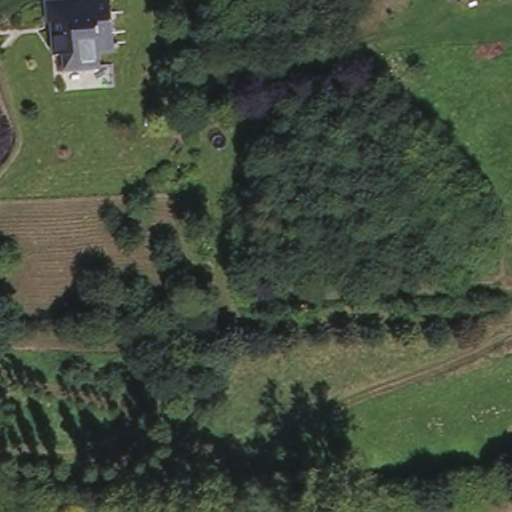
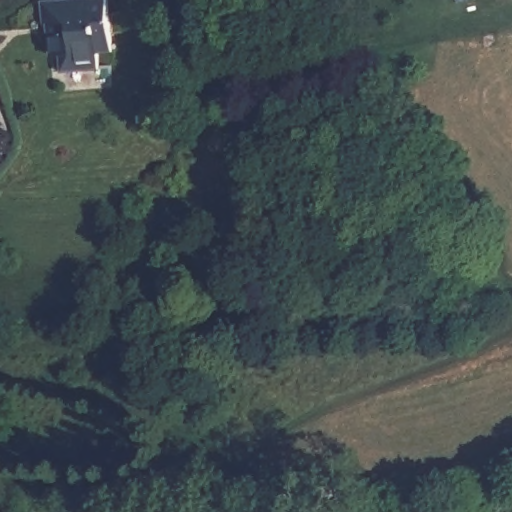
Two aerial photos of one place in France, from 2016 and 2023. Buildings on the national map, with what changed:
unchanged [(103,59),(103,72),(63,76),(62,57),(52,57),(45,6),(80,0),(114,0),(120,56),(103,59)]
unchanged [(462,0),(475,0),(463,4),(462,0)]

